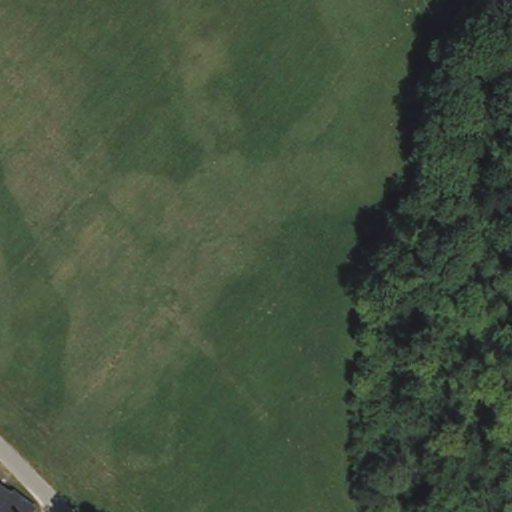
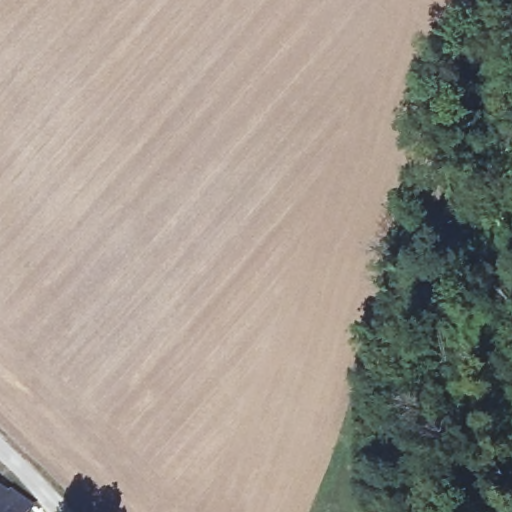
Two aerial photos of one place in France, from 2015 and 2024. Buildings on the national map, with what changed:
unchanged [(0,512),(0,477),(14,487),(17,483),(37,499),(29,509),(32,511),(31,512),(0,512)]

